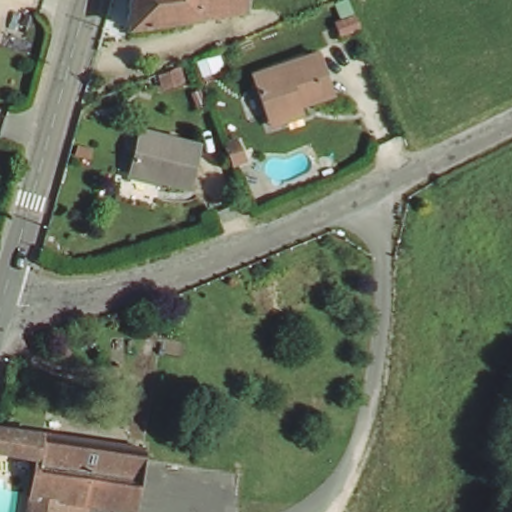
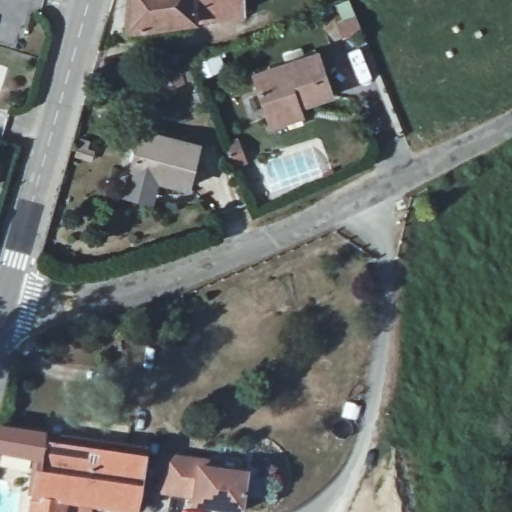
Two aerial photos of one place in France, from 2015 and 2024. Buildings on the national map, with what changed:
unchanged [(180,29),(122,40),(126,0),(238,0),(238,14),(182,25),(180,29)]
unchanged [(348,10),(345,0),(359,0),(362,5),(348,10)]
unchanged [(275,136),(270,121),(253,77),(316,55),(332,99),(301,110),(304,125),(275,136)]
unchanged [(199,142),(189,187),(131,174),(142,131),(199,142)]
unchanged [(24,501),(30,462),(0,455),(0,427),(139,449),(137,460),(140,461),(150,462),(150,463),(143,512),(91,512),(85,511),(58,506),(24,501)]
new [(190,505),(191,496),(158,491),(163,455),(214,463),(213,470),(245,475),(239,512),(219,509),(208,507),(190,505)]
unchanged [(24,501),(58,506),(56,512),(22,512),(24,501)]
unchanged [(88,512),(57,512),(58,506),(85,511),(89,511),(88,512)]

